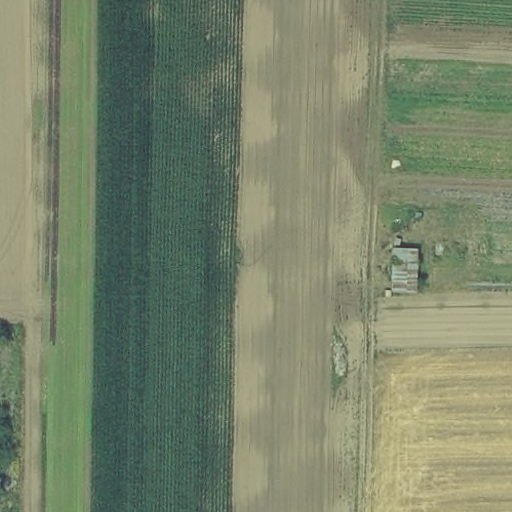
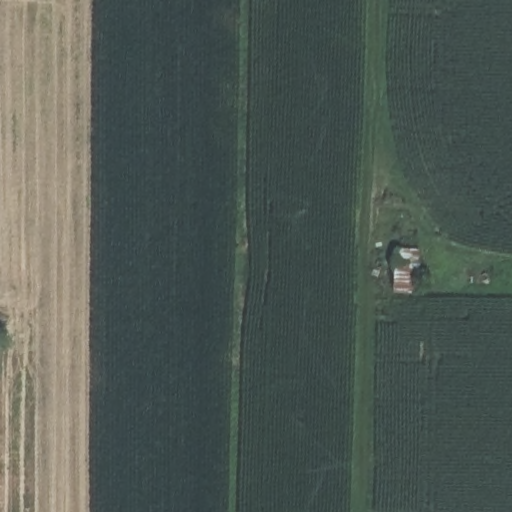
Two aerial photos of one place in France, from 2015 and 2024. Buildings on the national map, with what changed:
unchanged [(394,293),(393,251),(418,247),(417,291),(394,293)]

